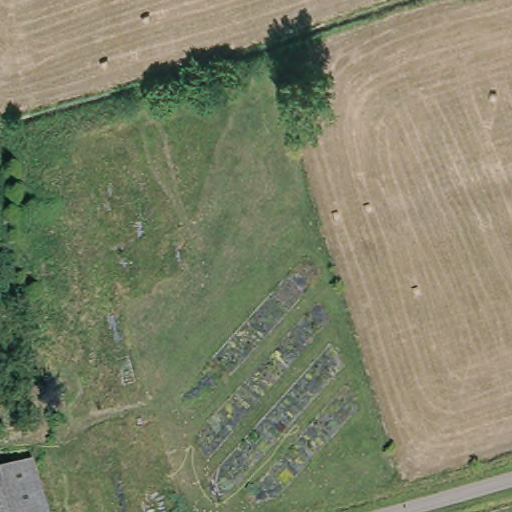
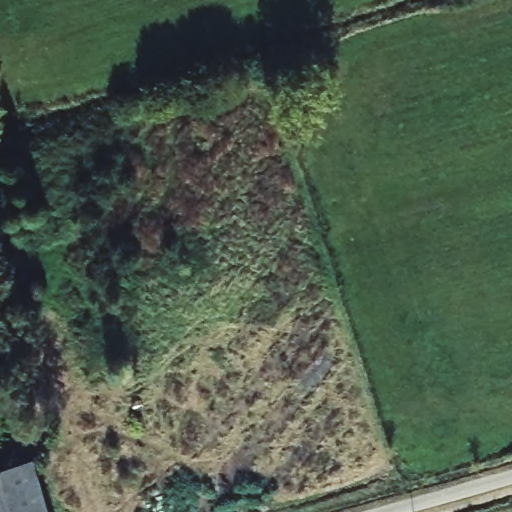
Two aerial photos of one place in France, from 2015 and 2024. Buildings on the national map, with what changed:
unchanged [(53,512),(0,512),(0,467),(36,456),(53,512)]

